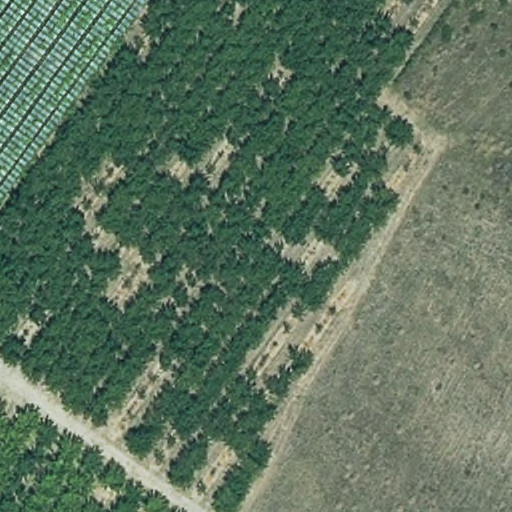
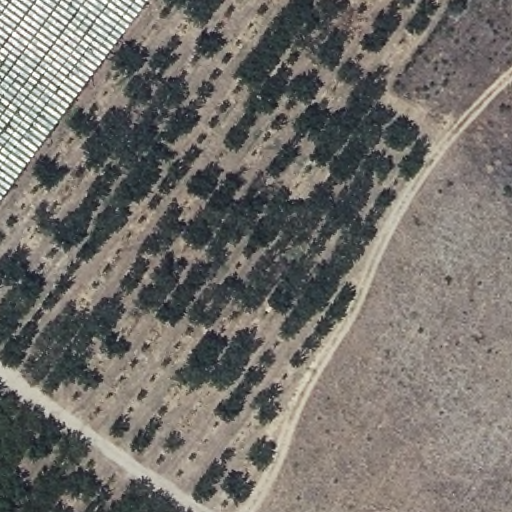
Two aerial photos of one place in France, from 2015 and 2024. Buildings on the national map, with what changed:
unchanged [(0,0),(152,0),(0,207),(0,0)]

